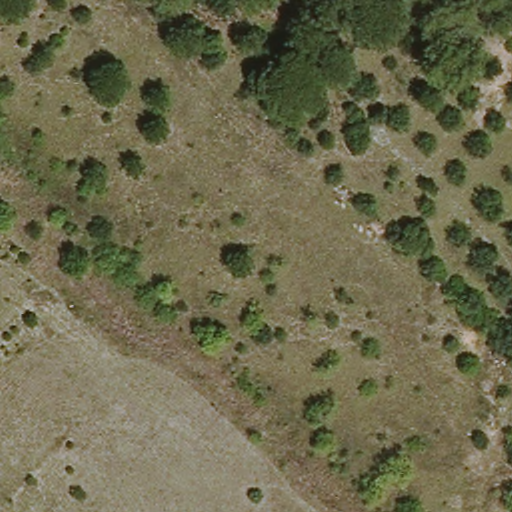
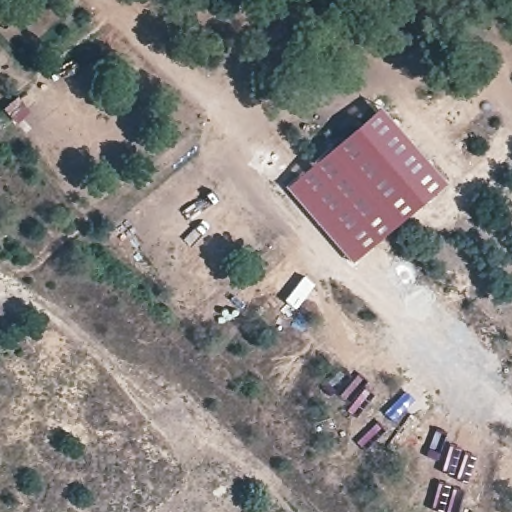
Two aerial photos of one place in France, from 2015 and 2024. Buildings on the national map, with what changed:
new [(380,104),(446,179),(352,263),(285,186),(380,104)]

